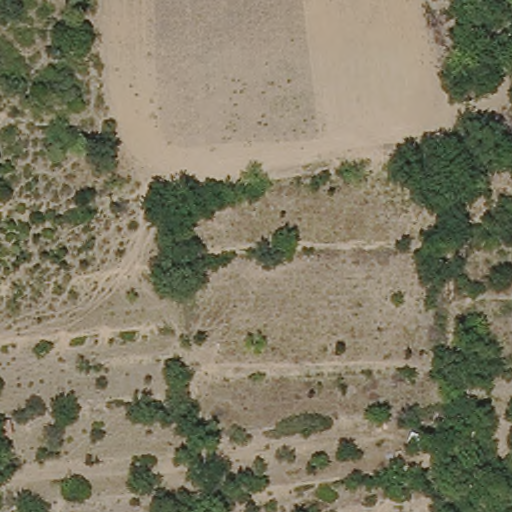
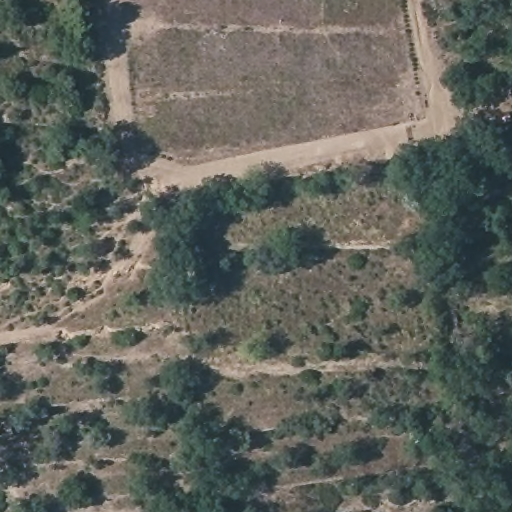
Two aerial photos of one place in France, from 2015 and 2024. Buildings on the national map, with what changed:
unchanged [(10,439),(0,438),(0,424),(10,423),(10,439)]

